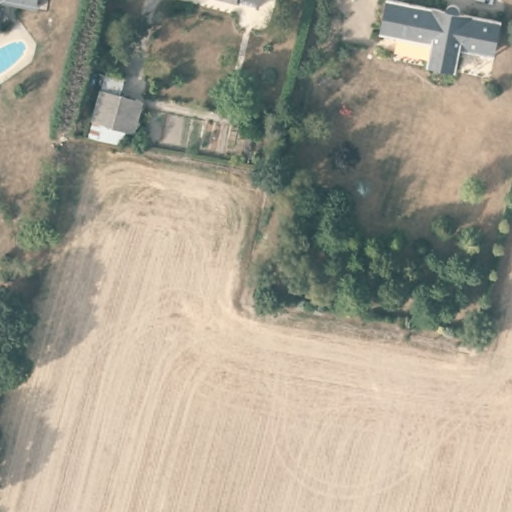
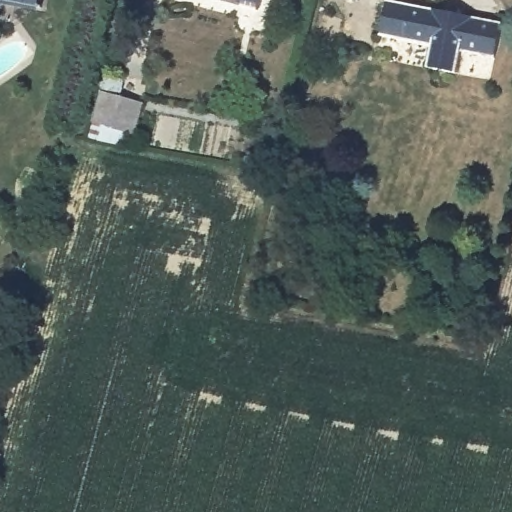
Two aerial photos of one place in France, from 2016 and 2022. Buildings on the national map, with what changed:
unchanged [(25,7),(1,0),(26,0),(25,7)]
unchanged [(237,6),(216,0),(240,0),(237,6)]
unchanged [(257,4),(242,0),(258,0),(257,4)]
unchanged [(355,2),(347,0),(355,0),(355,2)]
unchanged [(386,0),(396,0),(447,11),(450,3),(460,6),(460,12),(500,22),(493,56),(460,49),(455,71),(427,65),(432,42),(380,32),(386,0)]
unchanged [(140,102),(131,145),(95,137),(105,95),(140,102)]

